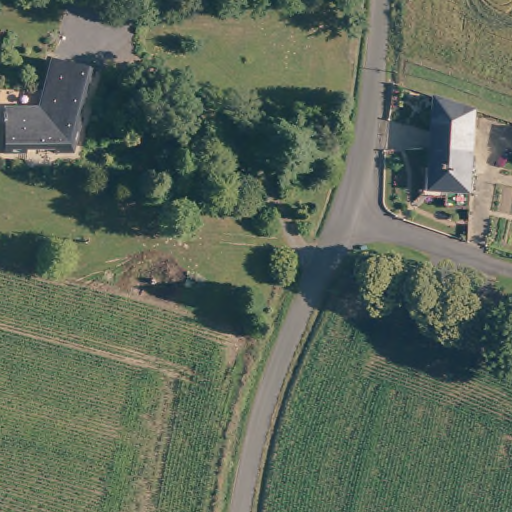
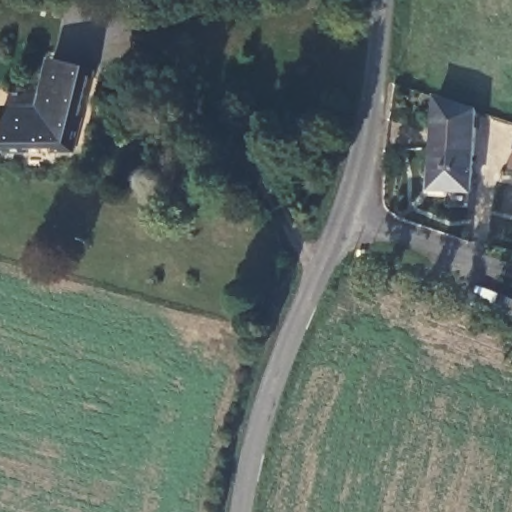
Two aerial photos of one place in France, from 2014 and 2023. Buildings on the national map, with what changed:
unchanged [(96,67),(92,83),(83,84),(76,116),(82,117),(74,157),(5,158),(6,111),(40,110),(52,58),(96,67)]
unchanged [(467,195),(431,193),(437,101),(474,113),(467,195)]

